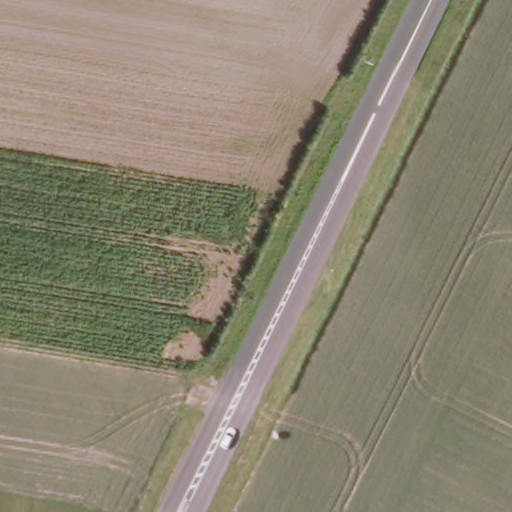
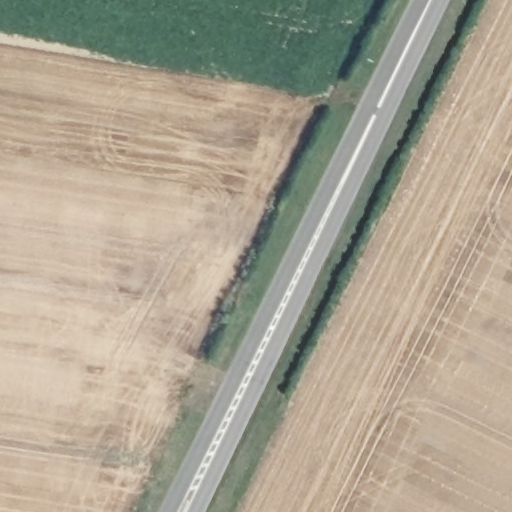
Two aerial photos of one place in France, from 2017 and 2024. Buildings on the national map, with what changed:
[]

